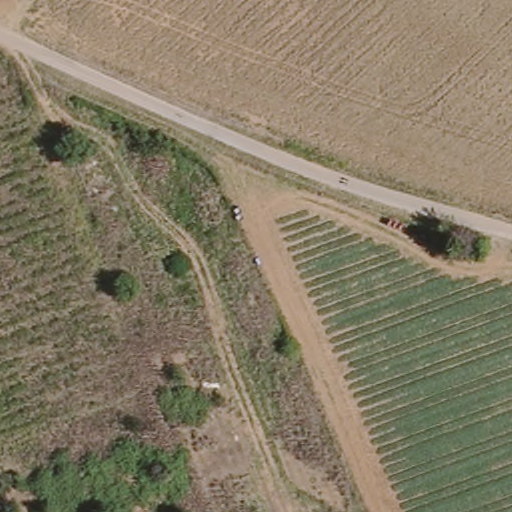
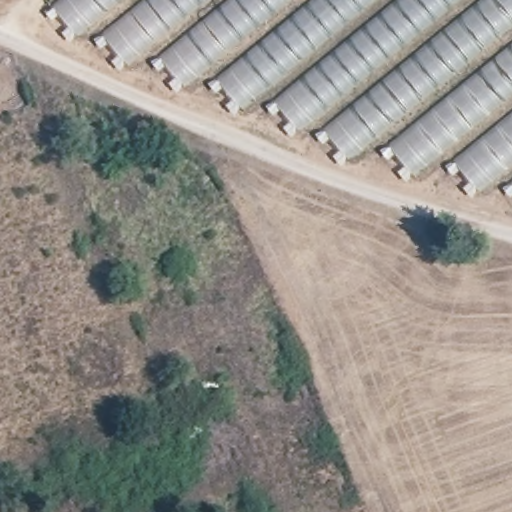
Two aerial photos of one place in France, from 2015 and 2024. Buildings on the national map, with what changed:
new [(478,192),(447,149),(413,176),(380,134),(349,160),(315,117),(299,131),(265,89),(242,110),(210,65),(185,87),(153,44),(127,64),(94,23),(78,36),(56,6),(62,0),(512,0),(512,182),(504,171),(478,192)]

